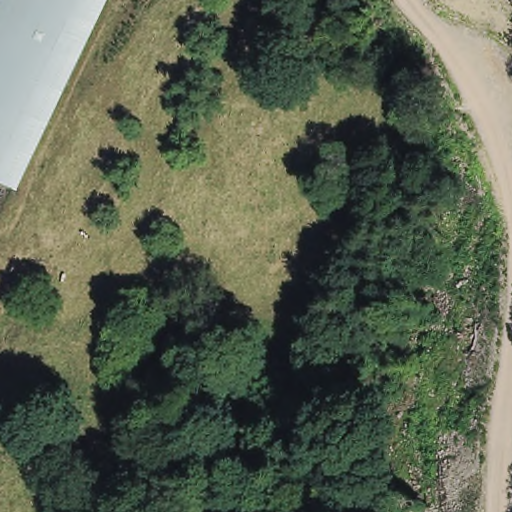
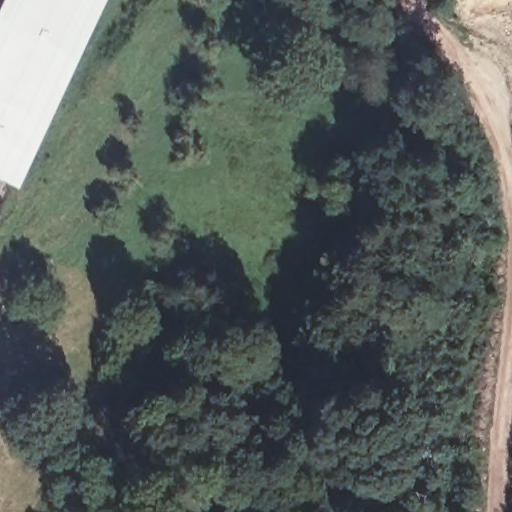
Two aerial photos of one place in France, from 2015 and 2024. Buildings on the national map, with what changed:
unchanged [(17,194),(0,185),(0,8),(4,0),(111,0),(17,194)]

